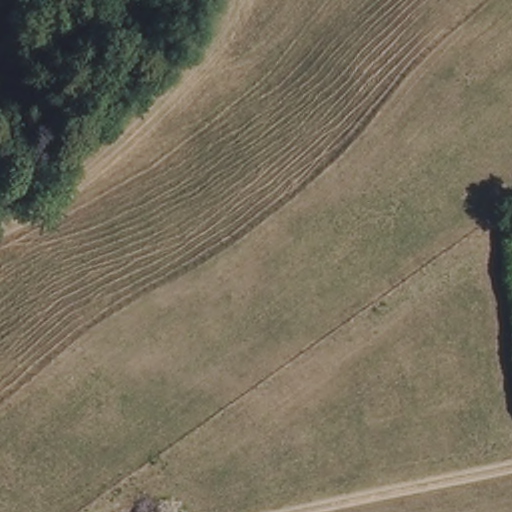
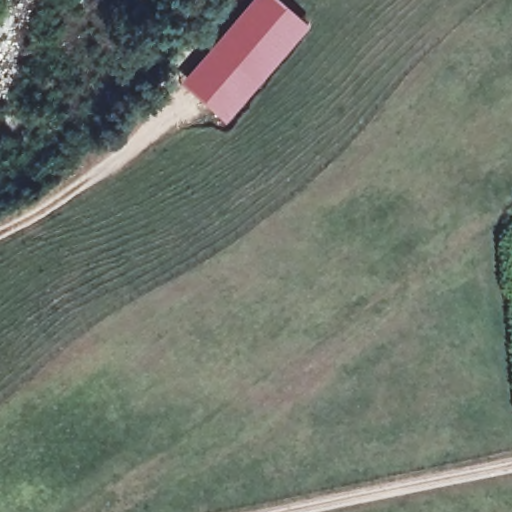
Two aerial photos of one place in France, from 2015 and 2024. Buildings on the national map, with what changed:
new [(276,0),(310,27),(226,125),(179,84),(250,0),(276,0)]

